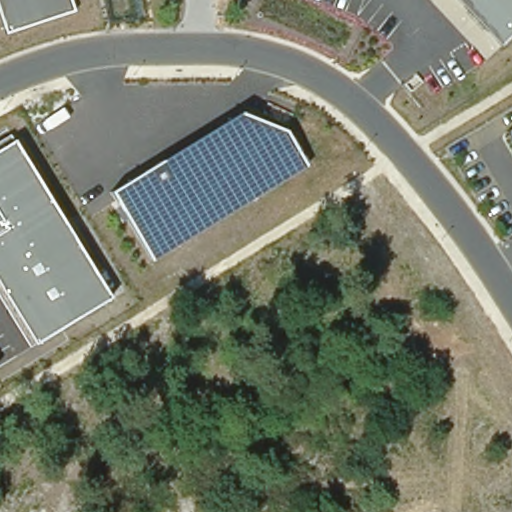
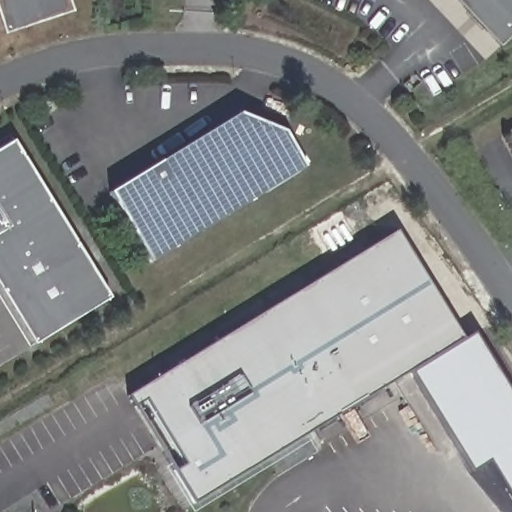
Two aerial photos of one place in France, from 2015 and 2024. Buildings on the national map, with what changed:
unchanged [(75,12),(8,35),(0,14),(0,0),(71,0),(75,12)]
unchanged [(460,0),(512,0),(512,36),(502,46),(460,0)]
unchanged [(151,261),(109,193),(242,112),(287,131),(308,164),(151,261)]
unchanged [(512,128),(512,143),(505,132),(512,128)]
unchanged [(31,348),(0,298),(0,144),(12,135),(111,297),(31,348)]
new [(128,396),(396,230),(462,337),(195,502),(175,470),(185,463),(147,398),(134,406),(128,396)]
new [(474,330),(512,395),(512,500),(487,457),(470,467),(410,369),(462,337),(474,330)]

